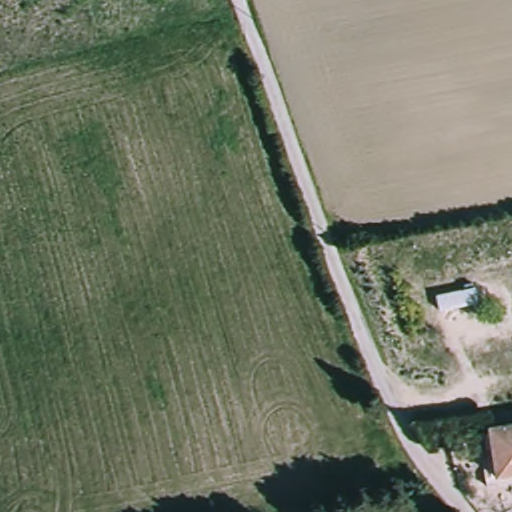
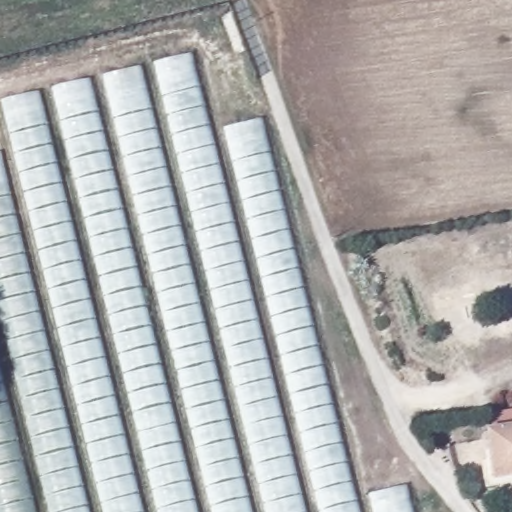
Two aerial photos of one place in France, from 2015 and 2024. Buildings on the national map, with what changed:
new [(12,151),(2,100),(190,53),(209,131),(260,119),(354,497),(404,485),(411,512),(0,512),(0,154),(12,151)]
unchanged [(488,474),(477,415),(512,410),(512,479),(490,483),(488,474)]

